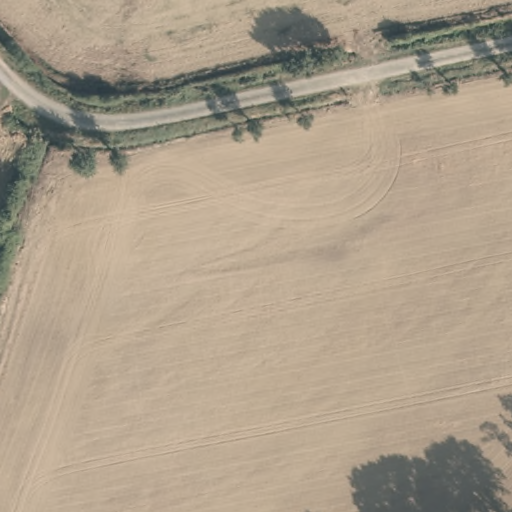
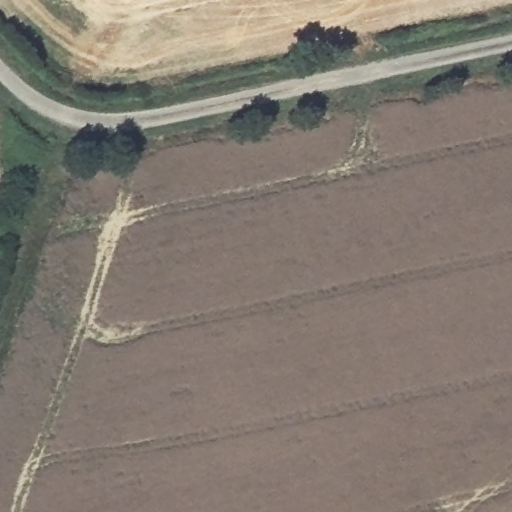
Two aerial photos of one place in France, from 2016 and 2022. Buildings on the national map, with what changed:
[]

